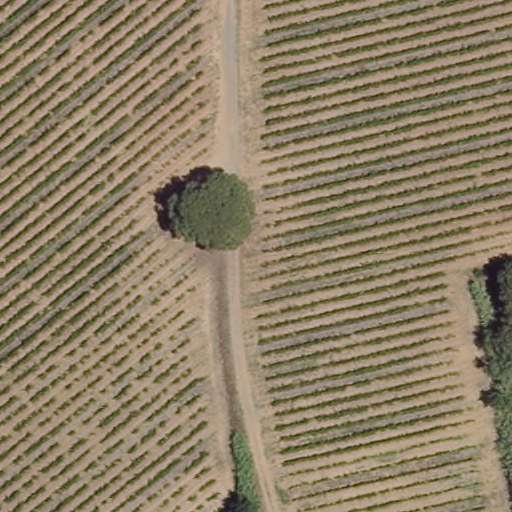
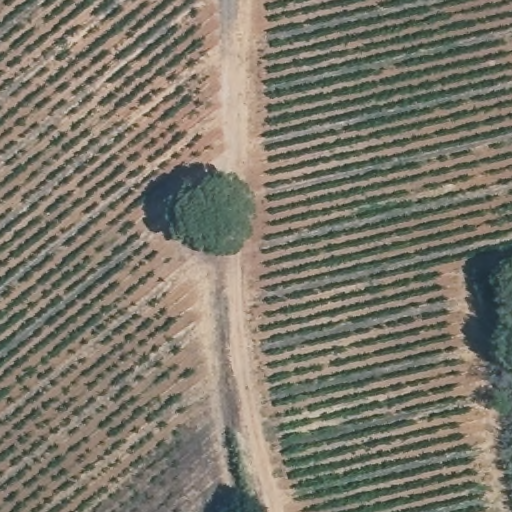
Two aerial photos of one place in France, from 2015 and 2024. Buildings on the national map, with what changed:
unchanged [(175,213),(200,197),(208,213),(186,228),(175,213)]

